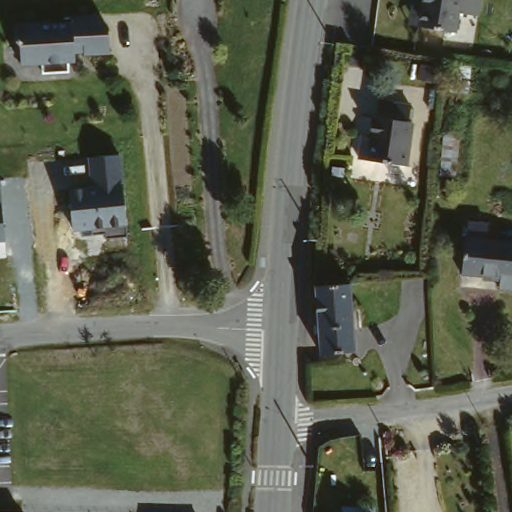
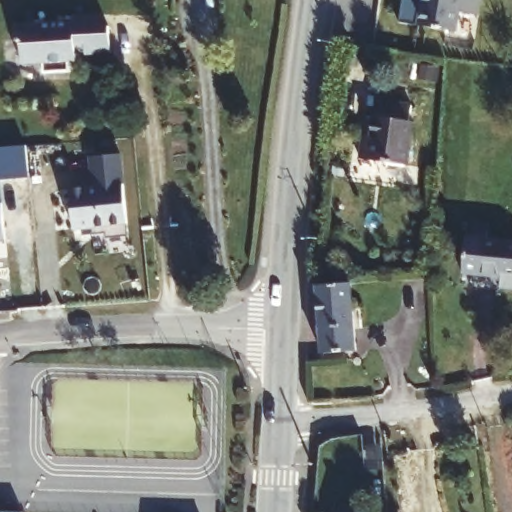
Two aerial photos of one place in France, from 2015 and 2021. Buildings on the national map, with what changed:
unchanged [(459,0),(454,34),(418,28),(410,26),(413,0),(459,0)]
unchanged [(88,56),(88,45),(78,46),(78,61),(72,61),(72,71),(46,72),(46,62),(25,63),(25,43),(20,39),(20,24),(77,23),(77,18),(87,18),(106,17),(113,29),(113,55),(88,56)]
unchanged [(360,165),(364,141),(371,141),(374,119),(378,120),(381,105),(413,109),(412,125),(417,125),(410,172),(360,165)]
new [(27,146),(30,177),(0,179),(0,148),(27,146)]
unchanged [(131,234),(106,237),(105,232),(84,235),(83,229),(75,231),(70,190),(93,186),(88,159),(121,154),(129,226),(131,234)]
unchanged [(0,242),(0,191),(4,242),(0,242)]
unchanged [(490,228),(490,240),(512,243),(512,288),(501,287),(502,281),(459,275),(466,225),(490,228)]
unchanged [(356,350),(323,352),(317,284),(345,282),(352,282),(356,350)]
demolished [(323,378),(325,405),(310,407),(309,380),(323,378)]
unchanged [(342,504),(374,505),(374,512),(342,512),(342,504)]
new [(23,512),(0,512),(0,511),(23,512)]

